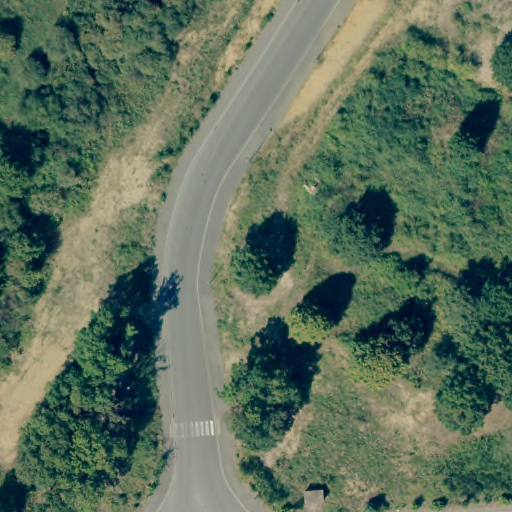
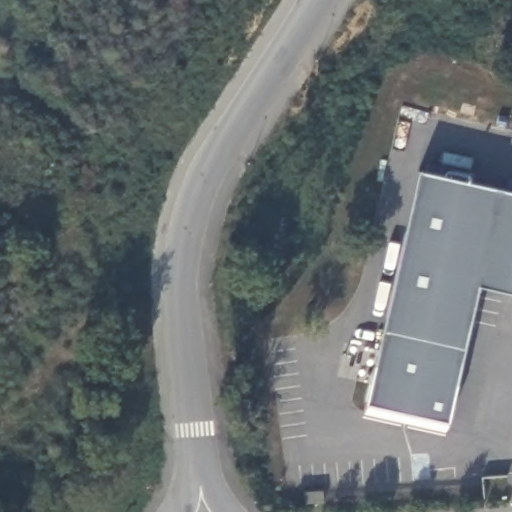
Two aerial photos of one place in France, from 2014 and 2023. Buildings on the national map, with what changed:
new [(512,191),(512,292),(480,286),(448,422),(367,404),(419,171),(512,191)]
unchanged [(323,491),(323,502),(305,503),(305,492),(323,491)]

